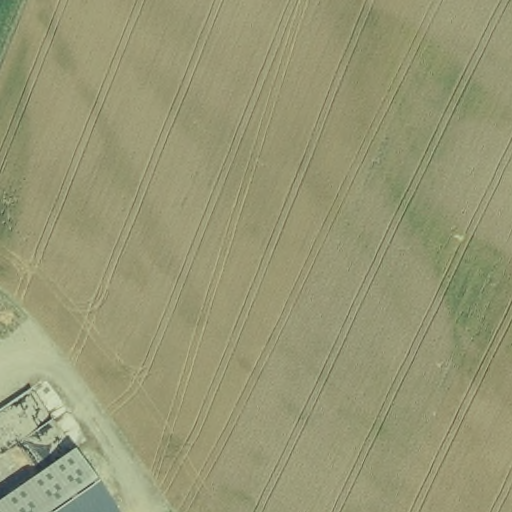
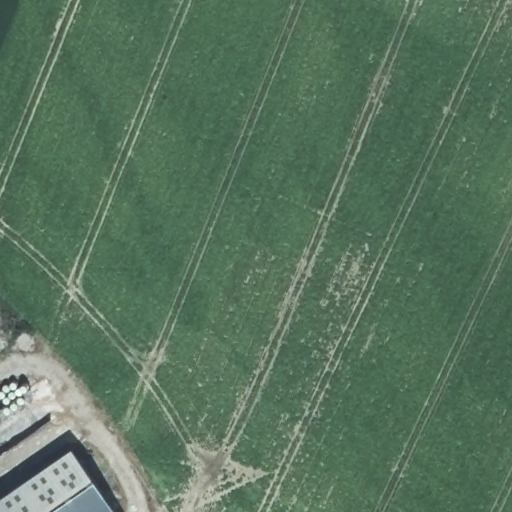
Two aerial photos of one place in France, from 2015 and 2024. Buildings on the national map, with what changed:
unchanged [(0,512),(0,498),(68,451),(115,512),(0,512)]

